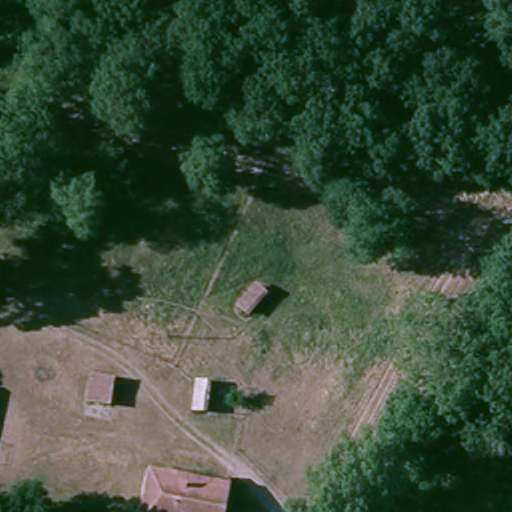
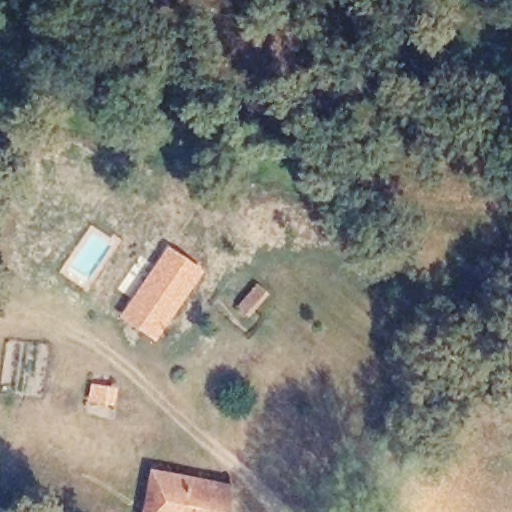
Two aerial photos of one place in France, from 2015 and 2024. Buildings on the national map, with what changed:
new [(166,246),(204,272),(155,343),(118,317),(166,246)]
unchanged [(255,284),(269,296),(249,319),(236,307),(255,284)]
unchanged [(116,377),(111,408),(86,404),(91,373),(116,377)]
unchanged [(221,381),(218,402),(201,399),(204,378),(221,381)]
unchanged [(239,476),(230,512),(149,512),(158,476),(198,486),(203,467),(239,476)]

